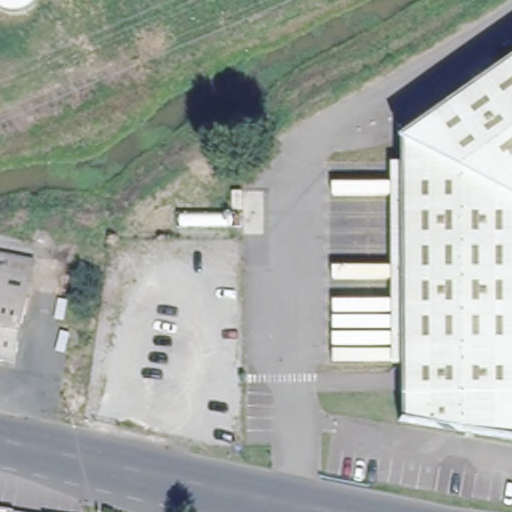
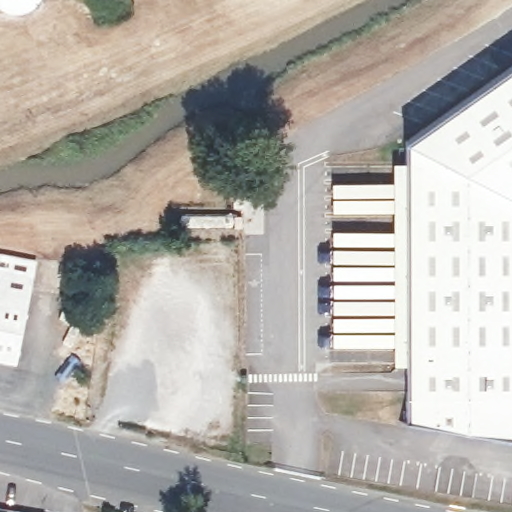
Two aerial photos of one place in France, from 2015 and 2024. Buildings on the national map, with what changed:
unchanged [(402,423),(401,141),(512,63),(512,441),(402,423)]
unchanged [(10,362),(0,359),(0,258),(30,264),(10,362)]

